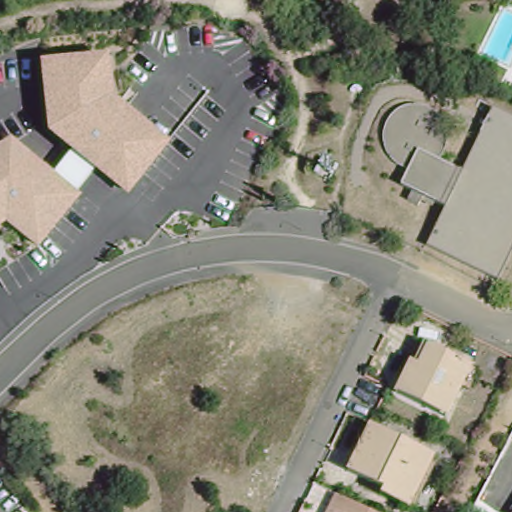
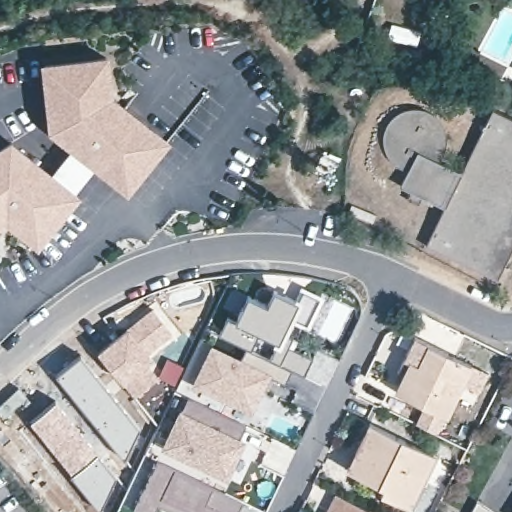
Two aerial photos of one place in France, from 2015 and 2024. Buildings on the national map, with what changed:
unchanged [(124,185),(100,166),(74,145),(53,129),(58,122),(49,115),(44,62),(106,55),(110,95),(168,139),(143,171),(138,168),(124,185)]
unchanged [(8,219),(0,224),(0,149),(12,141),(52,174),(78,194),(40,244),(8,219)]
unchanged [(52,174),(59,164),(74,145),(100,166),(85,184),(78,194),(52,174)]
new [(294,367),(271,355),(278,342),(258,332),(253,346),(248,344),(246,348),(220,335),(228,317),(237,319),(249,294),(268,304),(275,290),(295,299),(296,296),(301,286),(324,297),(309,328),(295,322),(288,335),(296,339),(292,348),(313,358),(304,374),(293,369),(294,367)]
new [(173,334),(149,354),(154,360),(153,362),(154,362),(150,368),(156,373),(155,375),(158,377),(134,397),(97,351),(153,308),(173,334)]
new [(214,344),(242,357),(248,344),(294,367),(288,381),(271,373),(253,408),(196,380),(214,344)]
unchanged [(403,396),(418,366),(426,369),(436,349),(476,369),(451,419),(403,396)]
new [(80,356),(140,429),(129,451),(123,459),(55,374),(80,356)]
new [(184,367),(175,385),(158,377),(167,359),(184,367)]
new [(189,394),(248,423),(240,438),(244,440),(228,474),(165,444),(189,394)]
new [(56,401),(98,452),(70,474),(30,421),(56,401)]
unchanged [(408,504),(382,493),(384,487),(349,470),(372,424),(434,454),(408,504)]
new [(98,452),(115,474),(118,477),(100,510),(70,474),(98,452)]
new [(166,462),(245,500),(239,512),(226,512),(221,509),(220,512),(184,512),(183,512),(182,512),(167,512),(164,511),(164,512),(142,512),(166,462)]
unchanged [(337,499),(364,512),(331,512),(337,499)]
unchanged [(474,511),(479,499),(499,512),(475,512),(474,511)]

